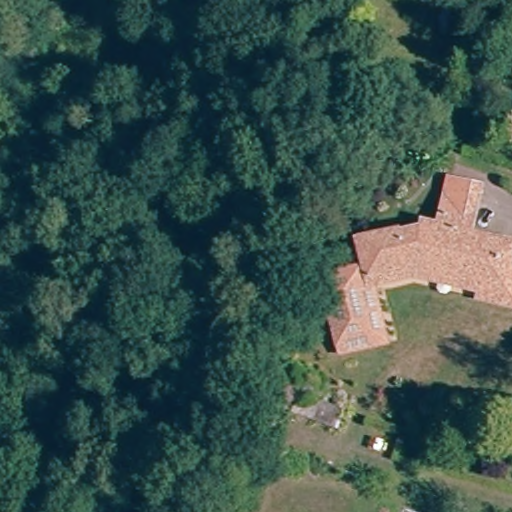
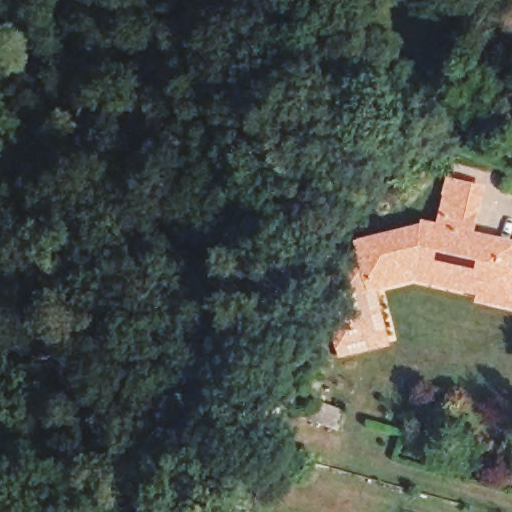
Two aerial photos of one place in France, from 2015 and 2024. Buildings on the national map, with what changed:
unchanged [(430,224),(430,222),(440,225),(451,180),(483,189),(470,234),(512,247),(512,259),(509,272),(505,290),(411,265),(372,281),(369,275),(367,270),(356,246),(396,229),(397,231),(399,236),(430,224)]
unchanged [(512,296),(511,301),(415,273),(375,290),(372,281),(411,265),(505,290),(509,272),(512,273),(512,296)]
unchanged [(397,340),(355,358),(339,323),(324,288),(367,270),(369,275),(372,281),(375,290),(397,340)]
unchanged [(293,408),(296,400),(298,395),(299,395),(344,411),(337,431),(291,415),(293,408)]
unchanged [(236,496),(243,471),(250,473),(267,477),(258,512),(232,512),(236,496)]

